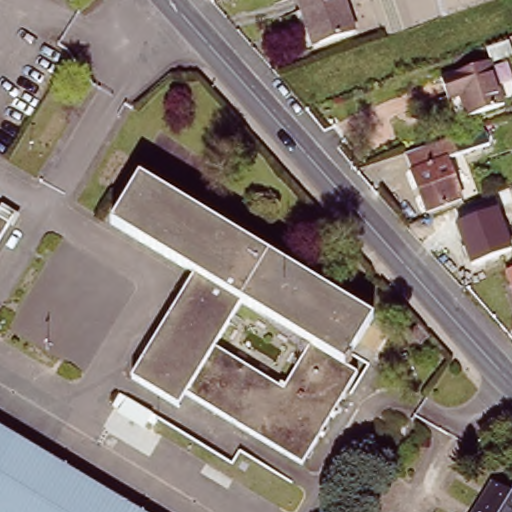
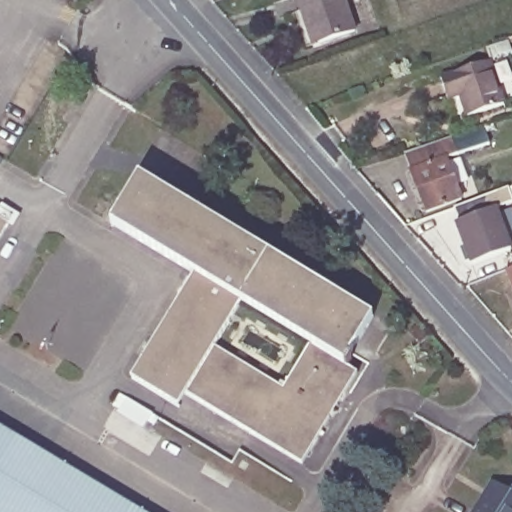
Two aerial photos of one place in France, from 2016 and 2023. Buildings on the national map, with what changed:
unchanged [(297,0),(344,0),(355,32),(313,46),(297,0)]
unchanged [(468,117),(461,97),(449,101),(441,79),(489,63),(503,106),(468,117)]
unchanged [(428,212),(407,154),(453,138),(459,155),(448,159),(463,200),(428,212)]
unchanged [(344,369),(356,375),(302,465),(182,396),(175,408),(129,381),(191,276),(108,228),(136,181),(371,320),(344,369)]
unchanged [(497,210),(512,250),(473,265),(458,225),(497,210)]
unchanged [(10,220),(0,236),(0,214),(10,220)]
unchanged [(512,269),(512,281),(508,271),(512,269)]
unchanged [(141,512),(0,512),(0,427),(141,512)]
unchanged [(492,480),(512,492),(512,512),(473,512),(492,480)]

